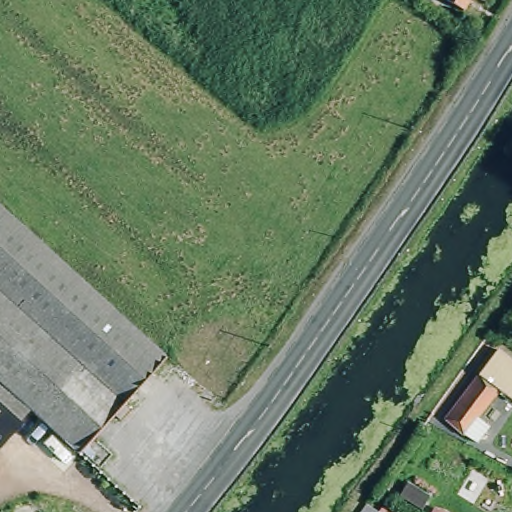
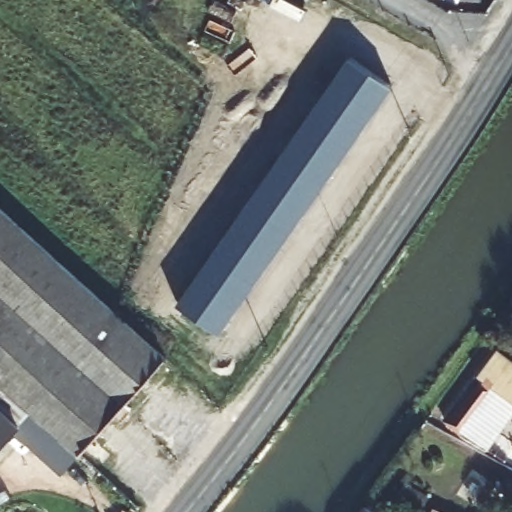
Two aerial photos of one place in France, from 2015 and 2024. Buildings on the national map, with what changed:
demolished [(465,16),(444,4),(441,8),(426,1),(426,0),(474,0),(465,16)]
new [(391,87),(219,333),(177,303),(349,56),(391,87)]
unchanged [(0,290),(0,214),(165,361),(126,404),(0,290)]
unchanged [(82,453),(37,413),(4,383),(0,379),(0,290),(126,404),(82,453)]
unchanged [(470,437),(434,413),(485,341),(512,358),(512,401),(498,393),(470,437)]
unchanged [(37,413),(0,455),(0,387),(4,383),(37,413)]
new [(62,472),(19,433),(37,413),(82,453),(62,472)]
unchanged [(419,512),(397,502),(409,481),(432,494),(423,512),(419,512)]
unchanged [(365,512),(363,512),(364,511),(365,512)]
unchanged [(382,512),(379,512),(380,511),(382,512)]

